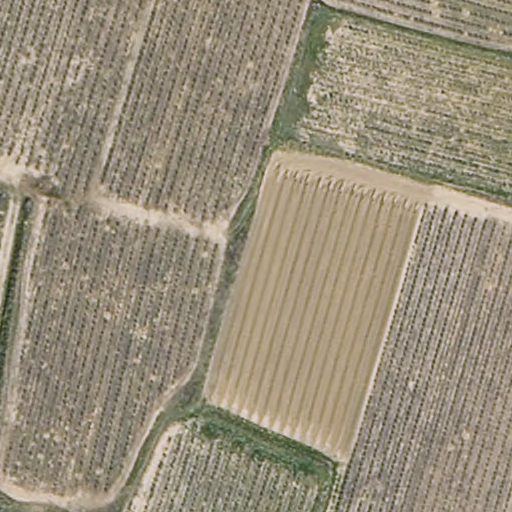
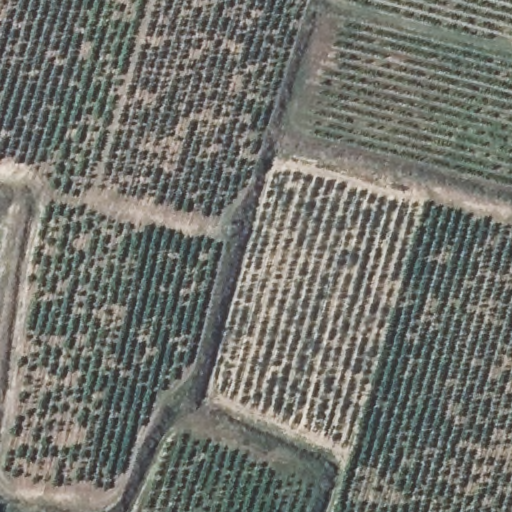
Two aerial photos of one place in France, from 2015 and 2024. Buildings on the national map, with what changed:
[]

